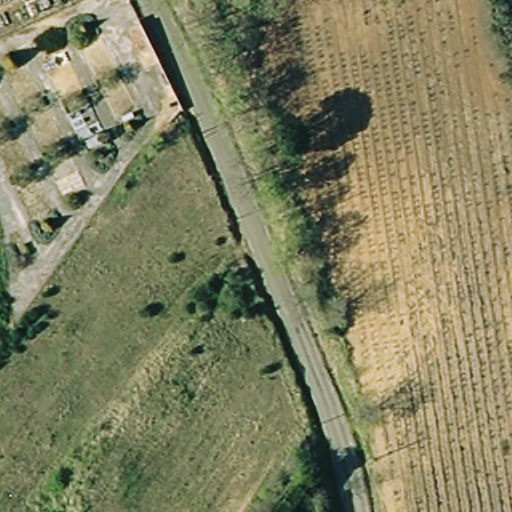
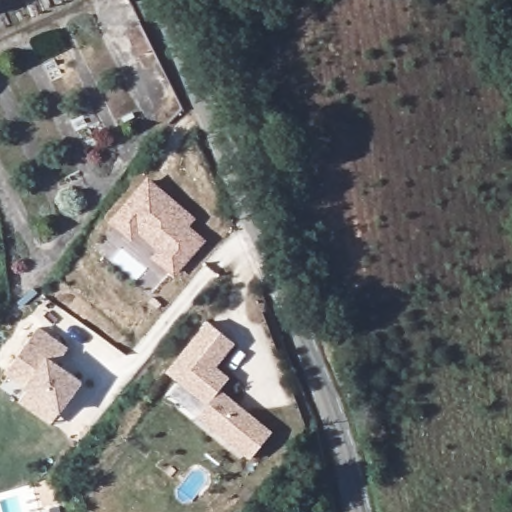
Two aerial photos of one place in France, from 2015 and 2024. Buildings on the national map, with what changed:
new [(148,181),(165,197),(161,200),(170,207),(173,203),(191,217),(185,225),(203,239),(177,270),(158,256),(165,248),(140,228),(133,236),(115,221),(148,181)]
new [(208,406),(167,371),(208,320),(237,343),(218,366),(231,376),(221,389),(274,431),(251,459),(198,416),(208,406)]
new [(70,348),(60,363),(85,382),(61,412),(51,424),(20,401),(28,389),(25,387),(6,372),(40,326),(70,348)]

